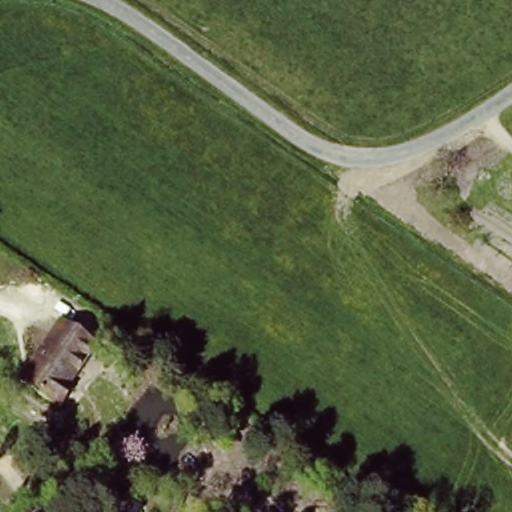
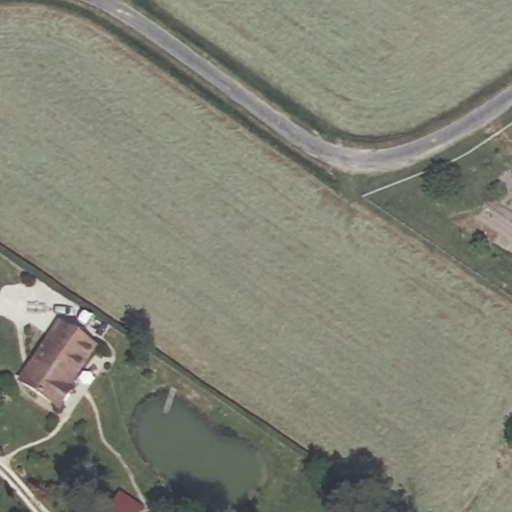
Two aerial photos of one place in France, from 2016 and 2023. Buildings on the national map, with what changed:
unchanged [(55,328),(90,351),(67,388),(70,390),(58,409),(55,413),(17,387),(20,385),(55,328)]
unchanged [(102,501),(115,482),(136,495),(130,506),(127,505),(123,512),(96,512),(102,501)]

